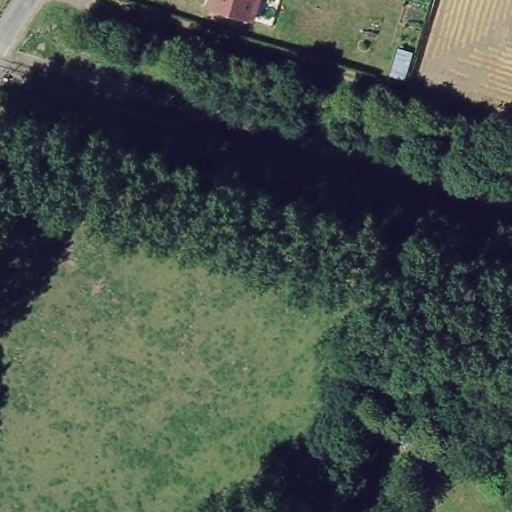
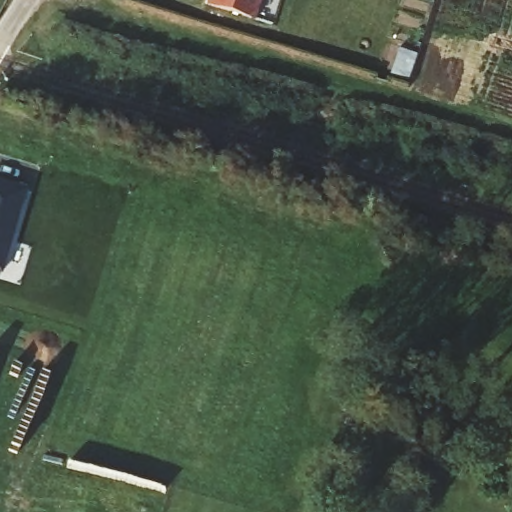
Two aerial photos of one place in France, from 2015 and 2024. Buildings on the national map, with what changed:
unchanged [(204,6),(206,0),(262,0),(254,24),(204,6)]
new [(28,188),(1,274),(0,274),(0,180),(28,188)]

